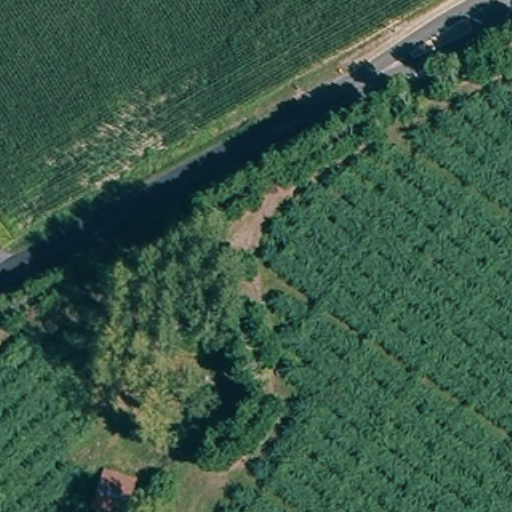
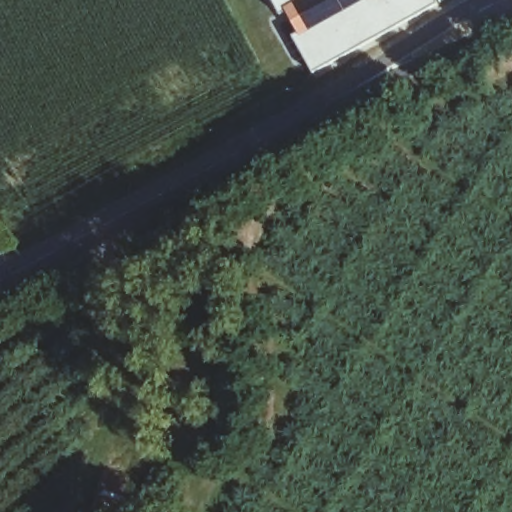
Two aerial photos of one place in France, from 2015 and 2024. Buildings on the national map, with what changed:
new [(295,36),(299,33),(287,11),(282,15),(274,0),(436,0),(438,5),(316,71),(295,36)]
unchanged [(155,285),(153,297),(142,296),(144,283),(155,285)]
unchanged [(138,482),(127,512),(103,512),(95,508),(108,471),(138,482)]

